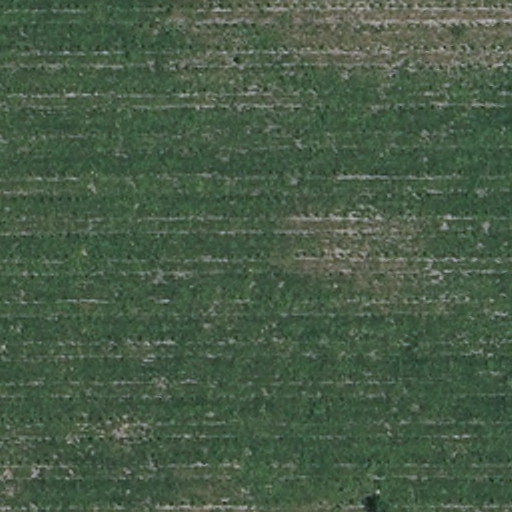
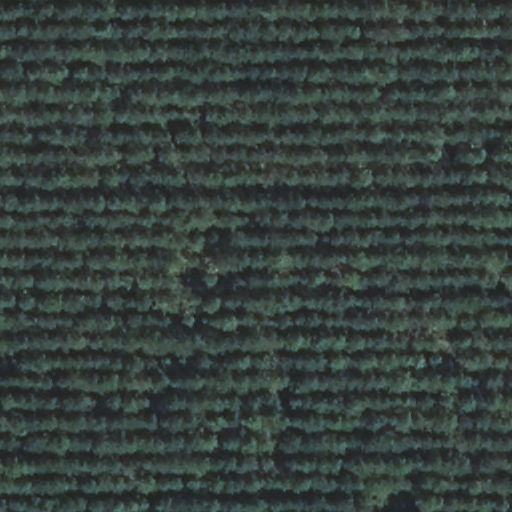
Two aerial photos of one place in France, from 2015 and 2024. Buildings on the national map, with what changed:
[]

